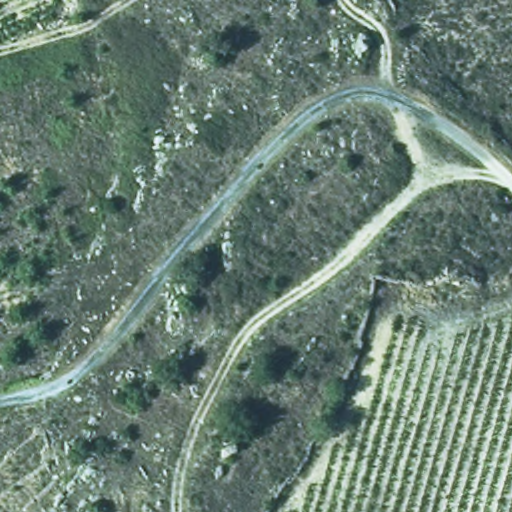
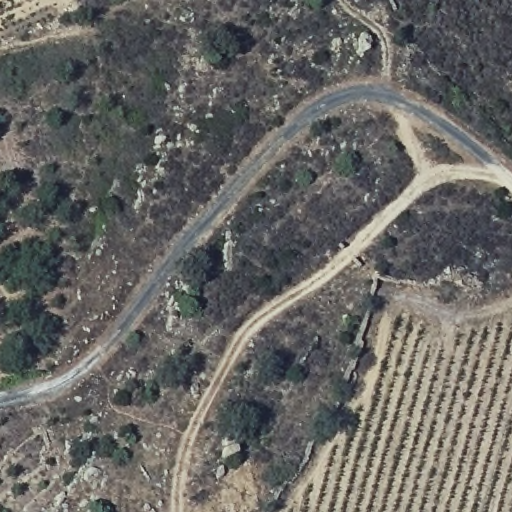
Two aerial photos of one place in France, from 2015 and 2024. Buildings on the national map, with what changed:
[]

